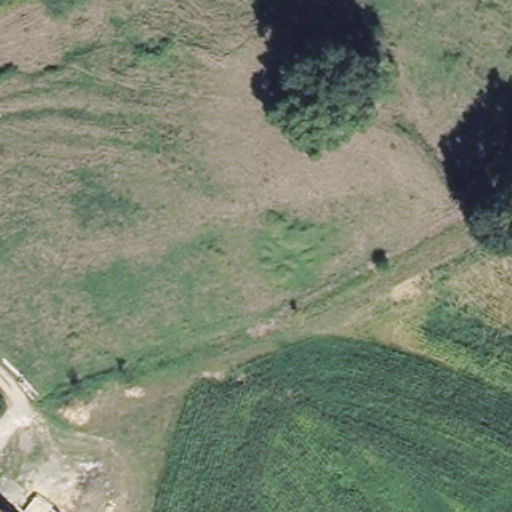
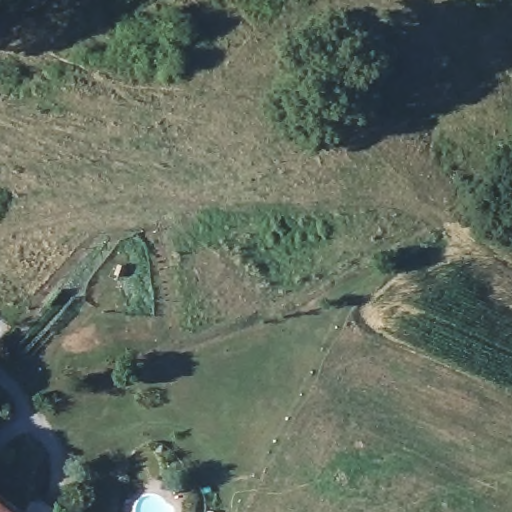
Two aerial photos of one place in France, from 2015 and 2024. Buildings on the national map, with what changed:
unchanged [(7,512),(0,512),(0,506),(7,512)]

